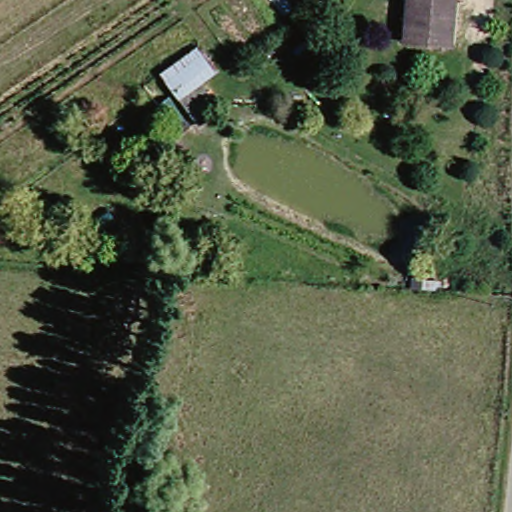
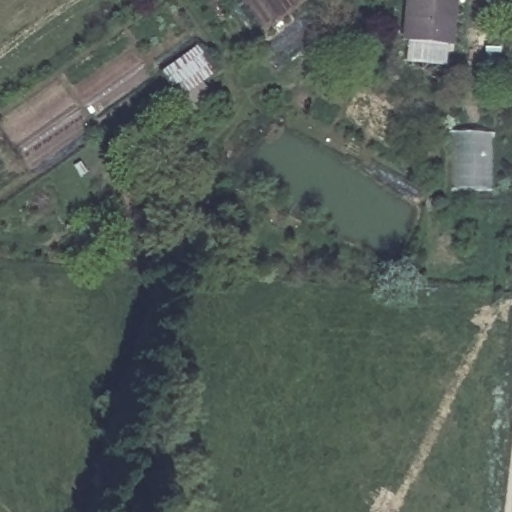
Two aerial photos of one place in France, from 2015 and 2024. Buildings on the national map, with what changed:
unchanged [(450,0),(445,44),(393,37),(398,0),(450,0)]
unchanged [(190,49),(209,74),(195,82),(211,107),(185,124),(154,76),(190,49)]
new [(495,190),(453,190),(451,135),(495,133),(495,190)]

